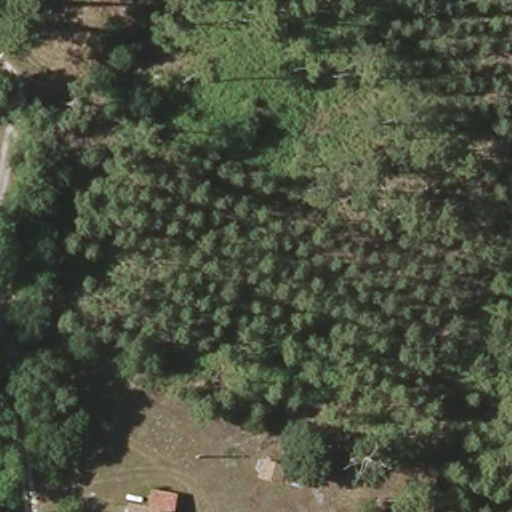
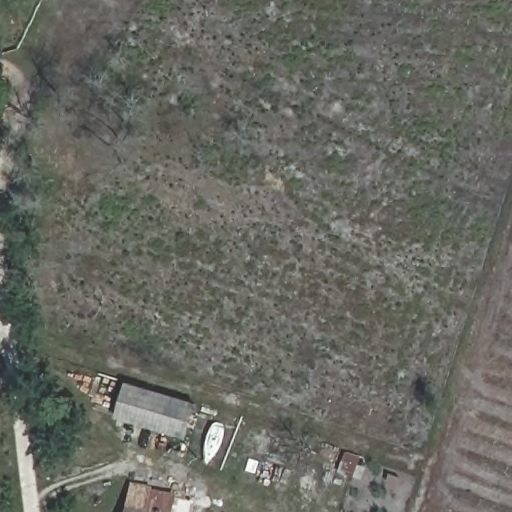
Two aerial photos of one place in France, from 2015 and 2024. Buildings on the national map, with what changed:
new [(116,417),(126,382),(197,403),(186,439),(116,417)]
unchanged [(284,445),(281,465),(328,476),(322,496),(258,480),(268,440),(284,445)]
unchanged [(146,511),(151,491),(178,497),(175,512),(124,512),(124,508),(146,511)]

